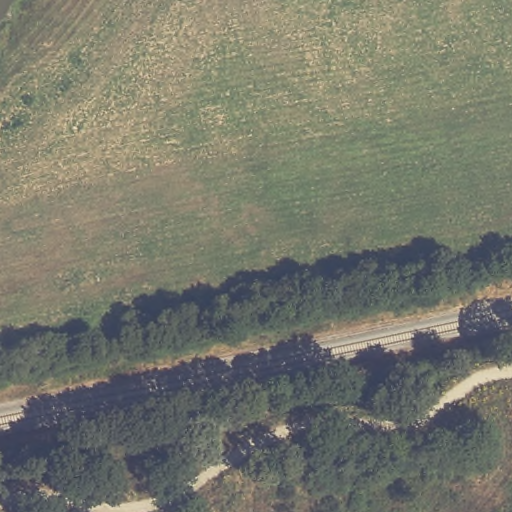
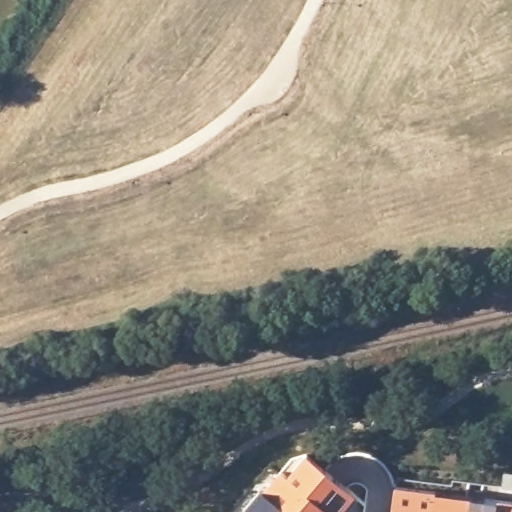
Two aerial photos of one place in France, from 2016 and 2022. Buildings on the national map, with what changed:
new [(278,467),(286,472),(305,451),(355,492),(340,512),(241,512),(278,467)]
new [(395,483),(436,487),(435,490),(512,500),(512,512),(390,512),(395,483)]

